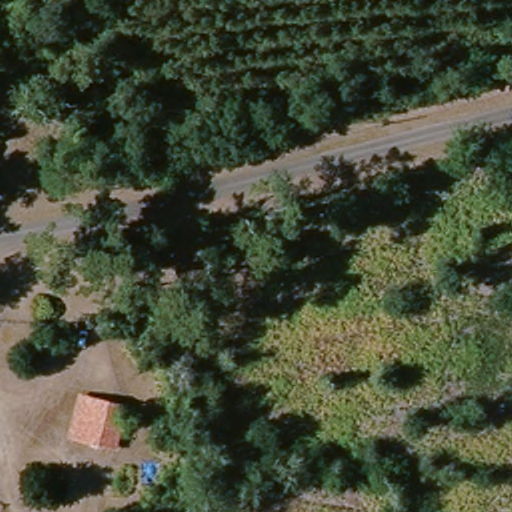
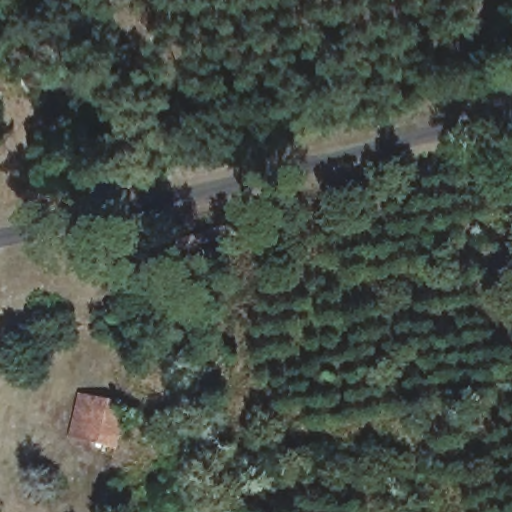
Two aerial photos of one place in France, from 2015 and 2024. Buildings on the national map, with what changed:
unchanged [(2,141),(0,148),(0,140),(2,141)]
unchanged [(112,444),(71,434),(78,391),(121,400),(112,444)]

